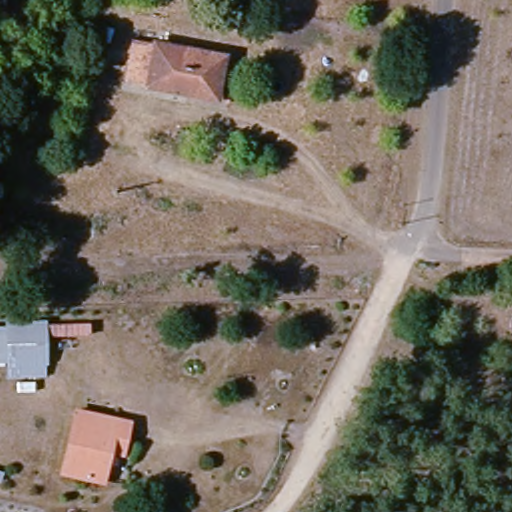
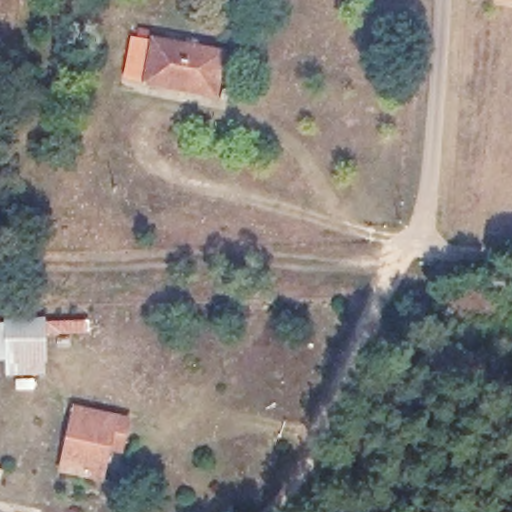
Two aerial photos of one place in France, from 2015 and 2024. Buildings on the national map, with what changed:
unchanged [(225,59),(221,99),(155,89),(149,88),(144,87),(130,85),(129,85),(135,45),(149,48),(154,48),(155,49),(160,49),(225,59)]
unchanged [(6,378),(5,363),(0,363),(0,320),(5,319),(50,319),(50,366),(46,366),(46,379),(6,378)]
unchanged [(105,458),(98,483),(60,473),(79,413),(128,427),(123,447),(120,461),(105,458)]

